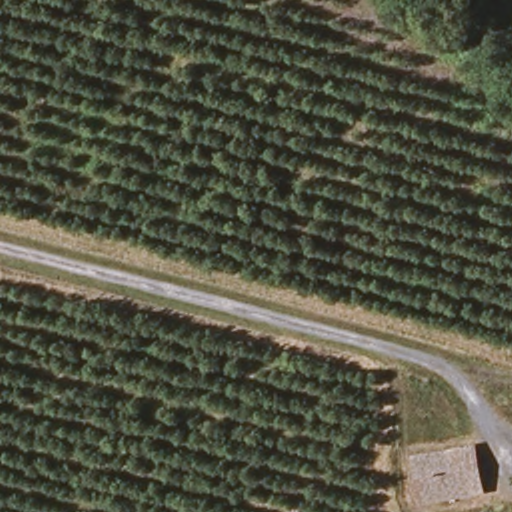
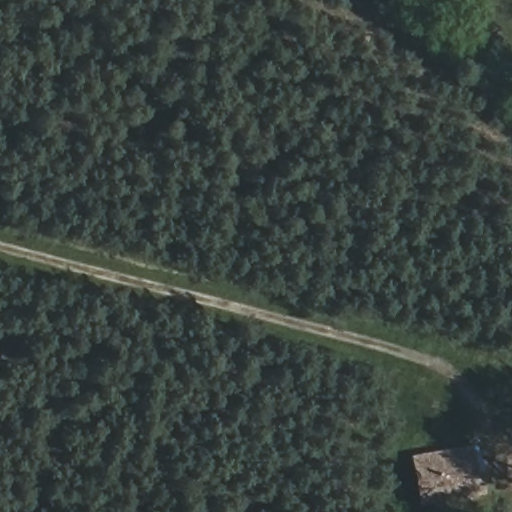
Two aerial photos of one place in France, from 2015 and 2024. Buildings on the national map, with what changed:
unchanged [(484,503),(418,508),(415,451),(480,446),(484,503)]

